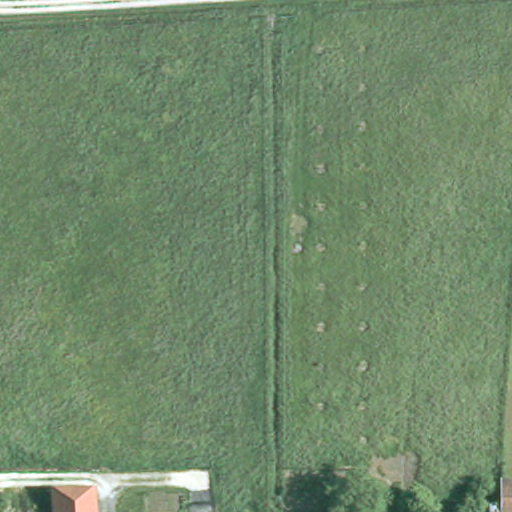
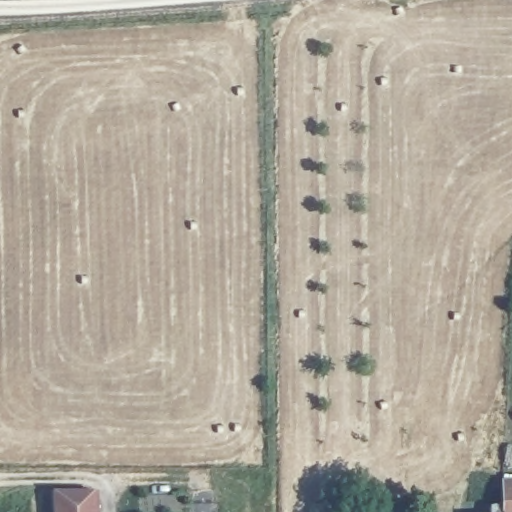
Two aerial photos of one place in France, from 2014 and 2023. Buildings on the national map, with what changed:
unchanged [(512,482),(512,512),(500,512),(500,507),(501,481),(512,482)]
unchanged [(96,512),(50,512),(48,488),(95,488),(96,512)]
unchanged [(500,507),(500,512),(488,512),(488,507),(500,507)]

